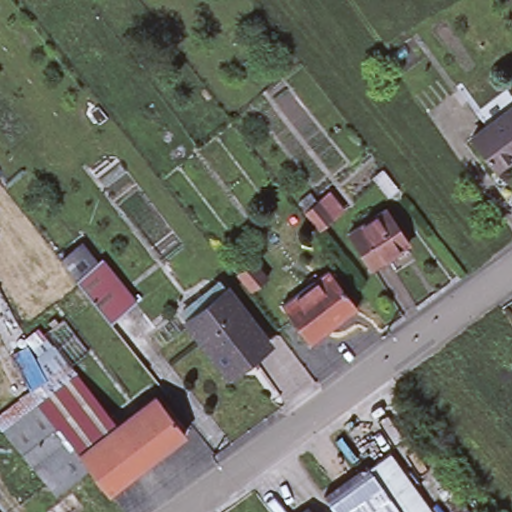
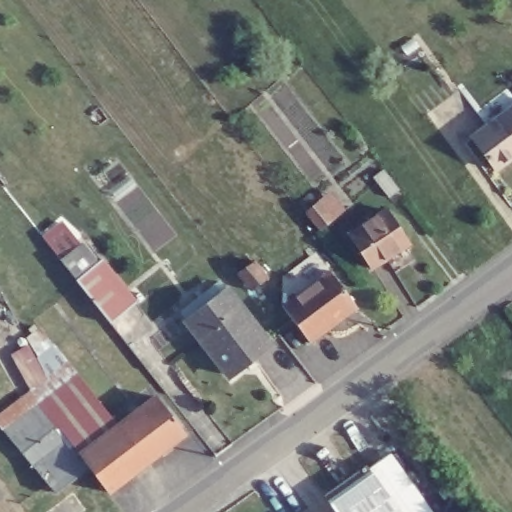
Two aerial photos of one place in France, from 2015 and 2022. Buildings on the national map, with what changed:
unchanged [(512,149),(487,167),(464,137),(512,101),(512,149)]
unchanged [(380,167),(395,186),(386,194),(371,175),(380,167)]
unchanged [(322,196),(337,215),(323,225),(309,206),(322,196)]
unchanged [(382,209),(406,244),(370,267),(347,233),(382,209)]
unchanged [(97,268),(105,262),(138,305),(132,311),(112,325),(63,263),(82,249),(97,268)]
unchanged [(252,261),(265,279),(249,291),(236,273),(252,261)]
unchanged [(325,276),(353,314),(328,331),(300,295),(325,276)]
unchanged [(230,382),(190,329),(185,321),(224,290),(230,299),(272,352),(230,382)]
unchanged [(307,346),(280,311),(300,295),(328,331),(307,346)]
unchanged [(43,481),(11,442),(0,429),(0,412),(65,362),(83,383),(107,415),(68,444),(77,456),(43,481)]
unchanged [(145,386),(174,423),(136,452),(107,415),(145,386)]
unchanged [(107,415),(136,452),(97,481),(77,456),(68,444),(107,415)]
unchanged [(391,456),(429,512),(398,512),(370,471),(388,458),(391,456)]
unchanged [(368,469),(370,471),(398,512),(333,512),(325,500),(368,469)]
unchanged [(306,506),(307,506),(311,512),(299,512),(306,506)]

